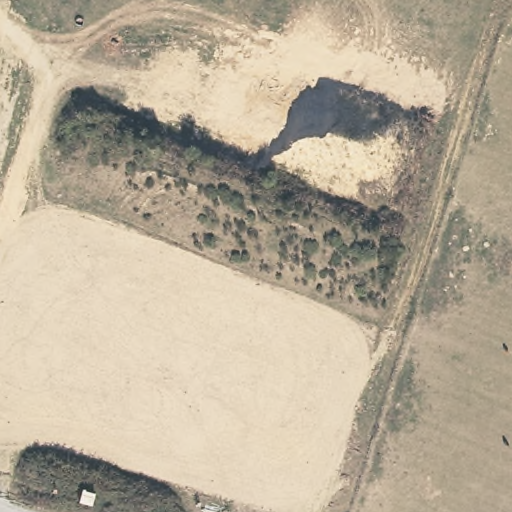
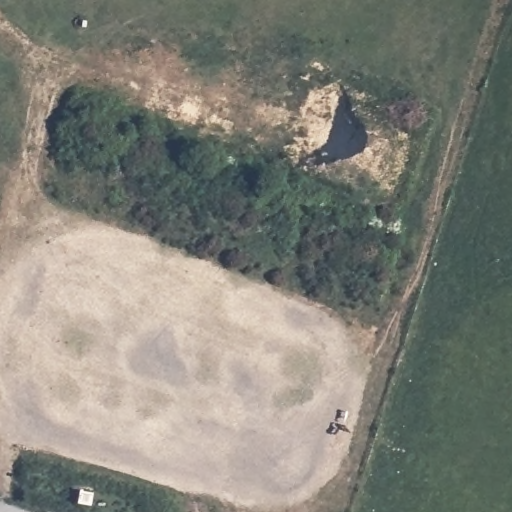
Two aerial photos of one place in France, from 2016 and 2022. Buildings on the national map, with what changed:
[]

